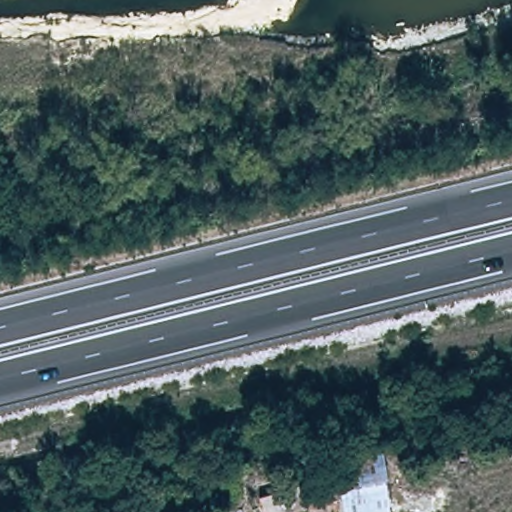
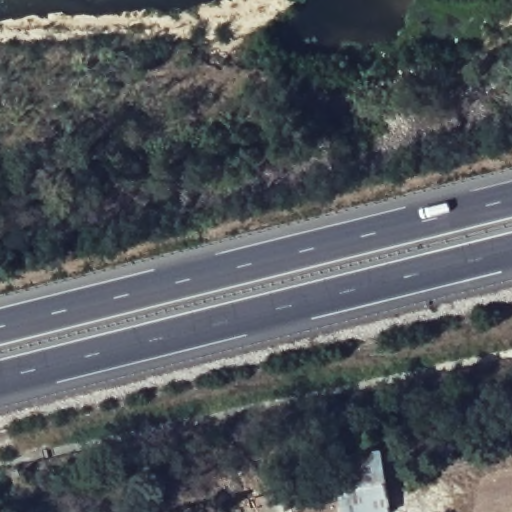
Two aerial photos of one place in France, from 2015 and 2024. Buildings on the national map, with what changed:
unchanged [(345,512),(337,456),(382,449),(391,512),(345,512)]
unchanged [(257,512),(252,497),(330,475),(332,485),(327,487),(331,502),(296,512),(257,512)]

